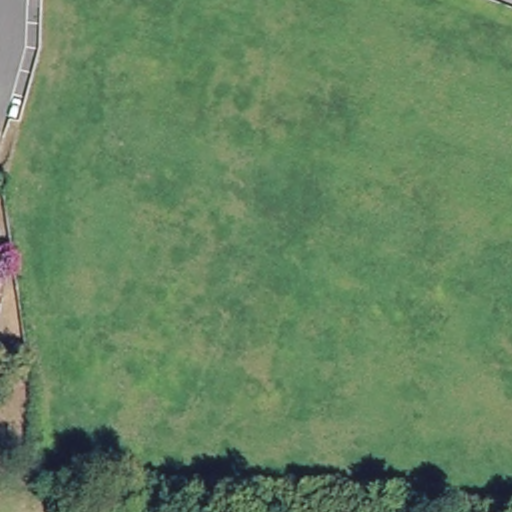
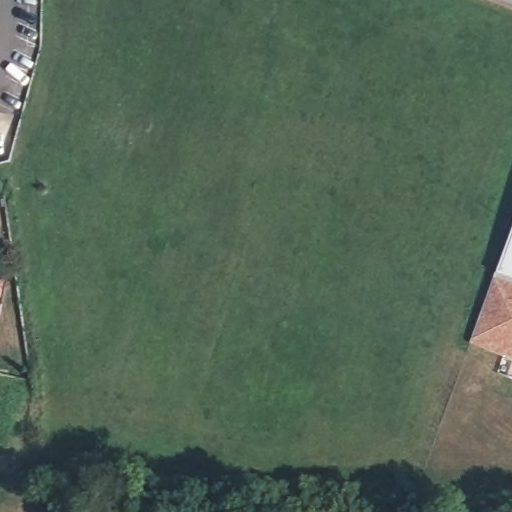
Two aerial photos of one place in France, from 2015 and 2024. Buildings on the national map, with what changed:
new [(469,344),(512,229),(512,358),(469,344)]

